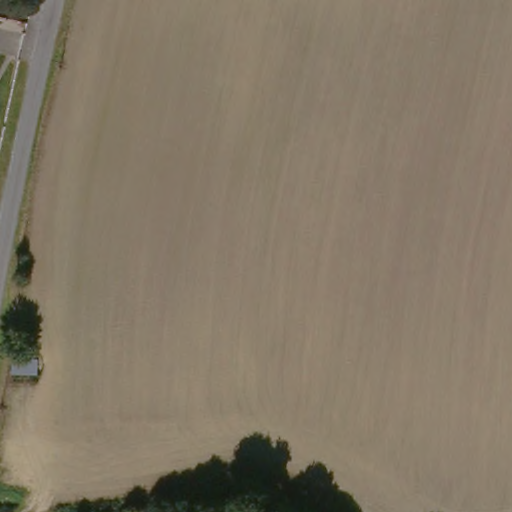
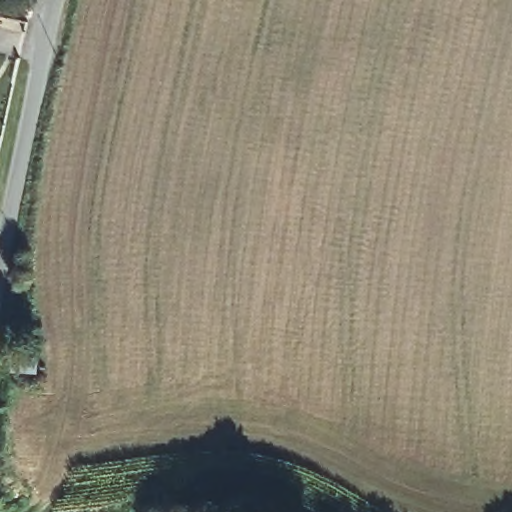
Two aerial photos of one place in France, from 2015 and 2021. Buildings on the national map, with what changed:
unchanged [(35,382),(36,395),(4,390),(5,378),(35,382)]

